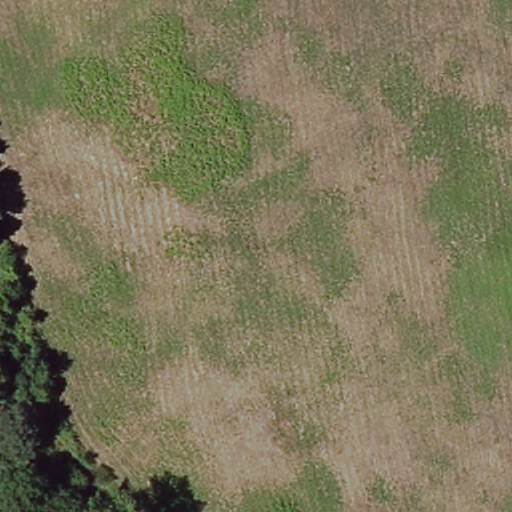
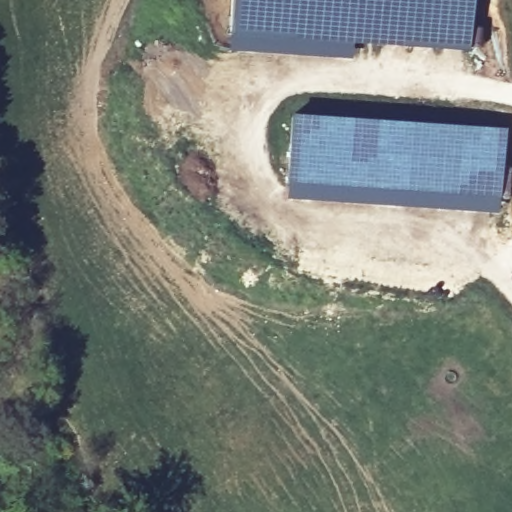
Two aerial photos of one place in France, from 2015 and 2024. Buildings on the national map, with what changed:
new [(469,0),(466,53),(225,39),(228,0),(469,0)]
new [(503,130),(499,196),(284,182),(288,115),(503,130)]

